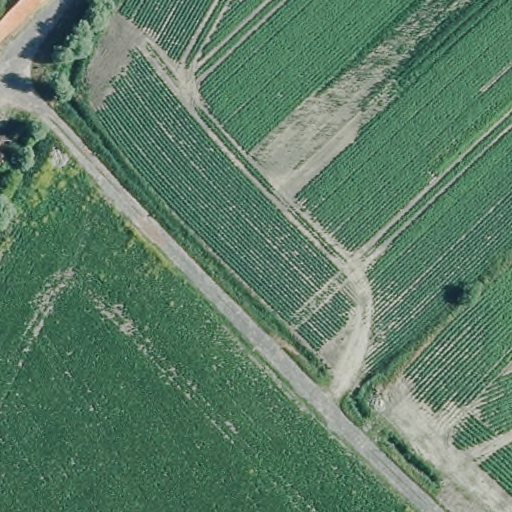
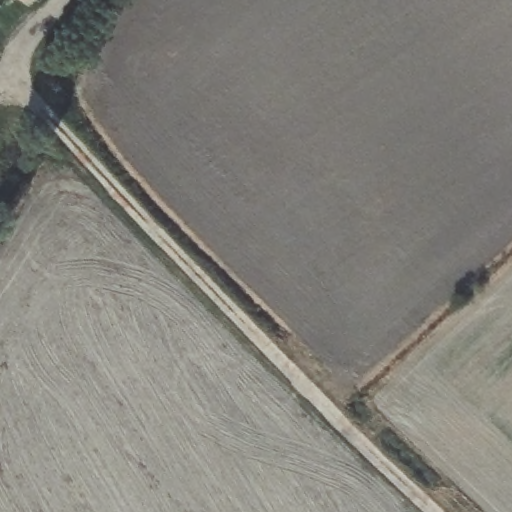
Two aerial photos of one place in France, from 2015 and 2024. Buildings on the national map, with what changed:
unchanged [(0,4),(4,0),(38,0),(0,40),(0,4)]

